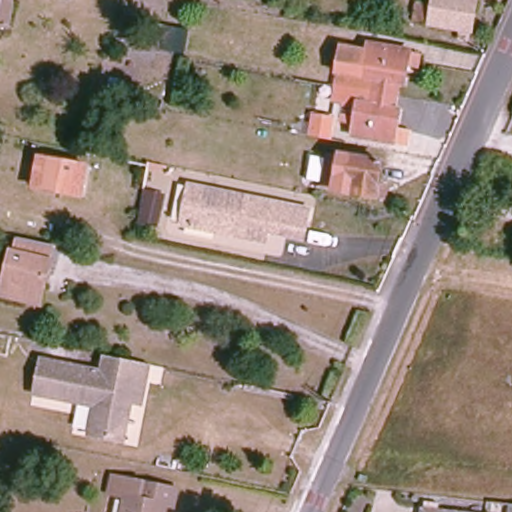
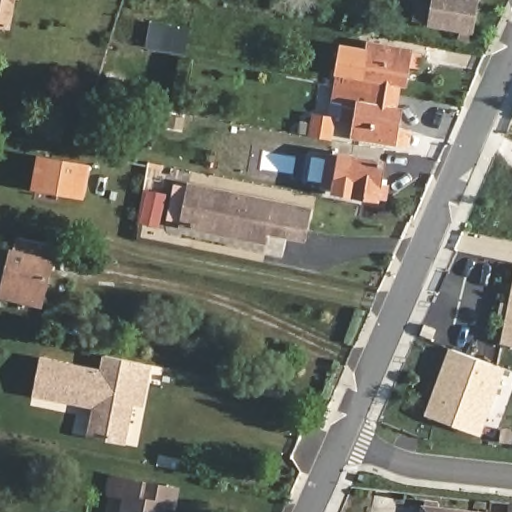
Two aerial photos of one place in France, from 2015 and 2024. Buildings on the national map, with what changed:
unchanged [(12,0),(6,26),(0,25),(0,0),(12,0)]
unchanged [(413,22),(417,3),(434,6),(436,0),(479,0),(470,32),(413,22)]
unchanged [(364,79),(344,75),(348,53),(373,57),(374,49),(406,54),(421,56),(420,68),(411,67),(409,86),(402,86),(401,98),(362,90),(364,79)]
unchanged [(414,146),(400,145),(360,137),(362,125),(348,122),(351,107),(340,105),(344,87),(362,90),(401,98),(399,115),(404,115),(402,130),(416,132),(414,146)]
unchanged [(317,137),(320,117),(341,121),(337,140),(317,137)]
unchanged [(390,188),(389,195),(328,183),(335,148),(388,158),(384,179),(392,180),(390,188)]
unchanged [(80,191),(47,185),(47,183),(45,182),(44,184),(35,182),(36,173),(49,176),(50,169),(37,165),(38,160),(84,169),(80,191)]
unchanged [(301,240),(282,236),(262,232),(259,243),(177,226),(186,186),(288,208),(307,212),(301,240)]
unchanged [(138,187),(153,190),(149,214),(134,211),(138,187)]
unchanged [(2,296),(5,281),(11,252),(14,252),(17,239),(29,241),(53,246),(44,290),(42,305),(2,296)]
new [(512,281),(512,346),(499,343),(512,281)]
new [(480,435),(423,415),(448,348),(505,368),(480,435)]
unchanged [(142,383),(137,406),(127,404),(119,440),(85,433),(91,405),(32,393),(38,359),(99,371),(102,354),(146,363),(142,383)]
unchanged [(181,491),(177,510),(167,508),(167,512),(125,512),(127,499),(114,496),(118,477),(181,491)]
unchanged [(512,512),(510,512),(511,503),(512,504),(512,512)]

